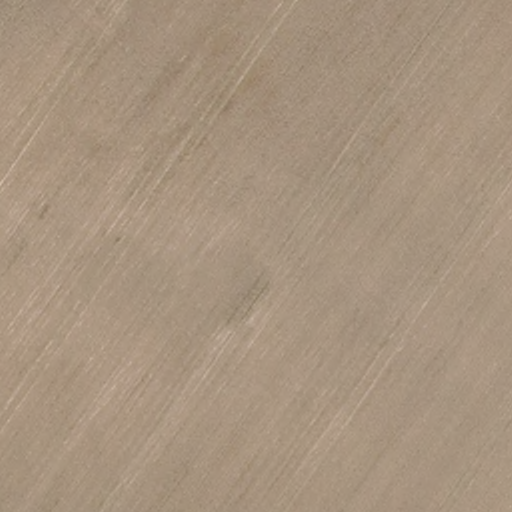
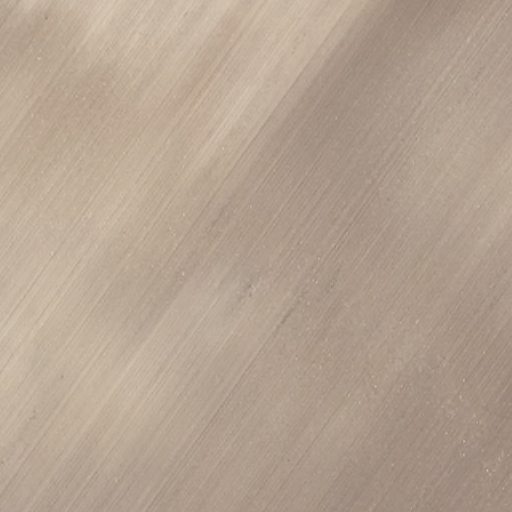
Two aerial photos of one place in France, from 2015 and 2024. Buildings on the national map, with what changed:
[]

